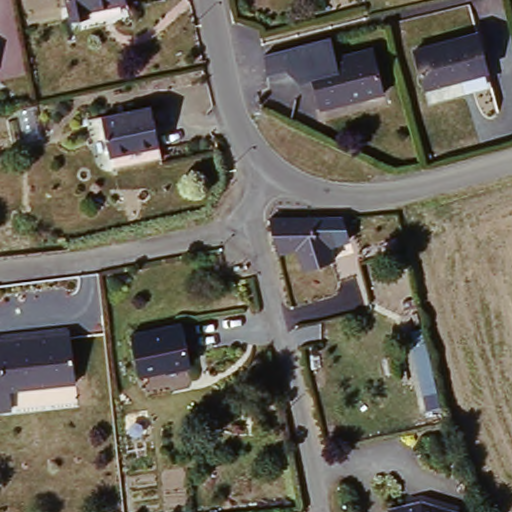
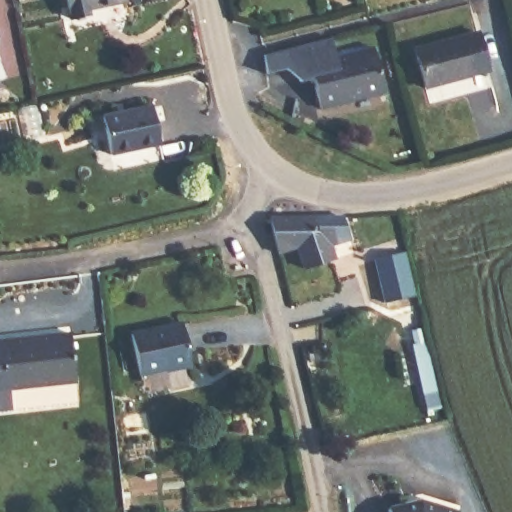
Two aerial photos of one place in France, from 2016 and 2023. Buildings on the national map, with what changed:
unchanged [(88,9),(89,16),(72,18),(68,0),(125,0),(125,1),(88,9)]
unchanged [(488,71),(424,87),(415,49),(477,32),(488,71)]
unchanged [(308,84),(296,87),(282,74),(262,79),(259,59),(326,42),(331,62),(369,52),(379,97),(315,113),(308,84)]
unchanged [(102,116),(150,106),(159,144),(110,155),(102,116)]
unchanged [(347,230),(327,236),(335,258),(304,268),(297,247),(278,252),(270,221),(269,218),(342,217),(347,230)]
unchanged [(182,323),(191,364),(141,375),(131,334),(182,323)]
unchanged [(0,336),(65,328),(71,377),(69,377),(3,385),(5,405),(0,406),(0,336)]
unchanged [(412,331),(422,329),(425,342),(427,342),(440,408),(426,412),(413,346),(415,345),(412,331)]
unchanged [(388,502),(421,496),(458,507),(457,512),(458,512),(391,512),(388,502)]

